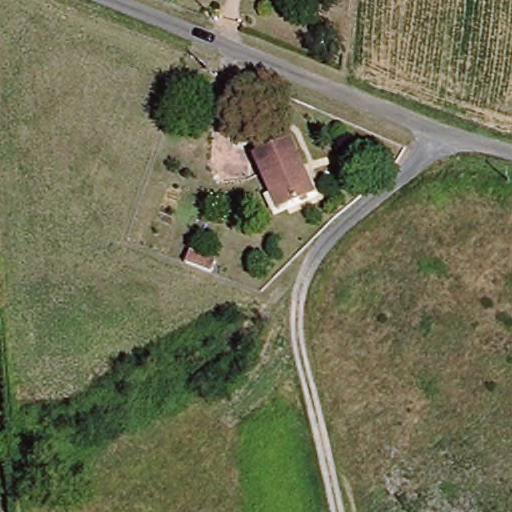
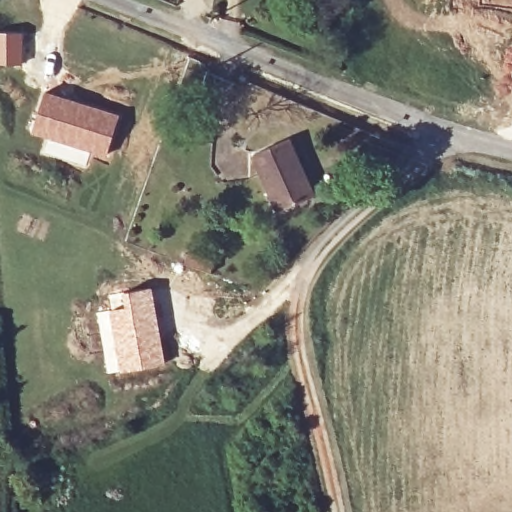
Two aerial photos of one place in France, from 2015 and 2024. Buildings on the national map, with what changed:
new [(22,32),(22,63),(0,63),(0,32),(22,32)]
new [(31,133),(44,91),(120,114),(105,160),(90,155),(85,167),(40,152),(45,138),(31,133)]
unchanged [(310,198),(274,209),(257,151),(294,139),(302,170),(310,198)]
unchanged [(209,278),(188,269),(192,258),(213,267),(209,278)]
new [(110,309),(107,294),(152,286),(166,364),(107,374),(95,312),(110,309)]

